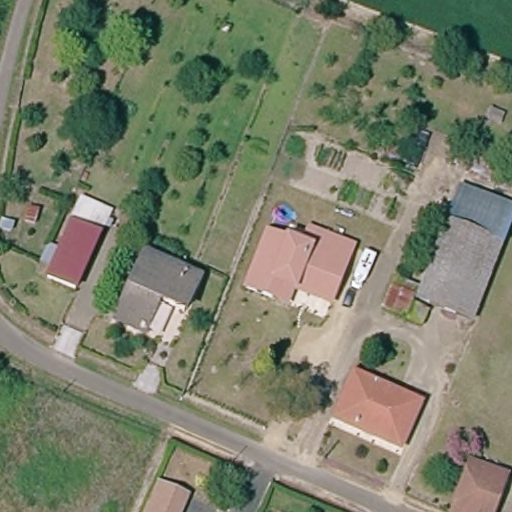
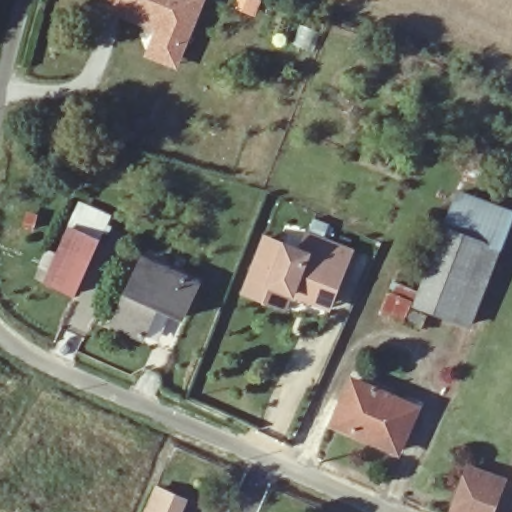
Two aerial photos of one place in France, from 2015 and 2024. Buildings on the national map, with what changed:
new [(144,58),(157,30),(106,8),(109,0),(208,0),(177,69),(144,58)]
unchanged [(512,212),(512,223),(502,249),(488,243),(450,228),(463,193),(512,212)]
unchanged [(47,285),(54,273),(41,268),(47,250),(59,254),(81,204),(112,213),(79,298),(47,285)]
unchanged [(422,302),(450,228),(488,243),(460,317),(422,302)]
unchanged [(275,300),(245,288),(267,238),(306,254),(313,235),(356,252),(348,271),(333,306),(320,301),(297,292),(291,307),(275,300)]
unchanged [(502,249),(500,252),(473,322),(460,317),(488,243),(502,249)]
unchanged [(141,260),(197,283),(184,317),(159,306),(146,341),(114,328),(141,260)]
unchanged [(332,428),(350,386),(418,412),(416,418),(372,401),(365,421),(347,414),(341,431),(332,428)]
unchanged [(341,431),(347,414),(365,421),(372,401),(416,418),(402,456),(357,438),(341,431)]
demolished [(433,432),(420,465),(407,460),(421,427),(433,432)]
unchanged [(472,473),(506,487),(497,512),(457,512),(472,473)]
unchanged [(156,497),(182,506),(180,512),(151,512),(156,497)]

